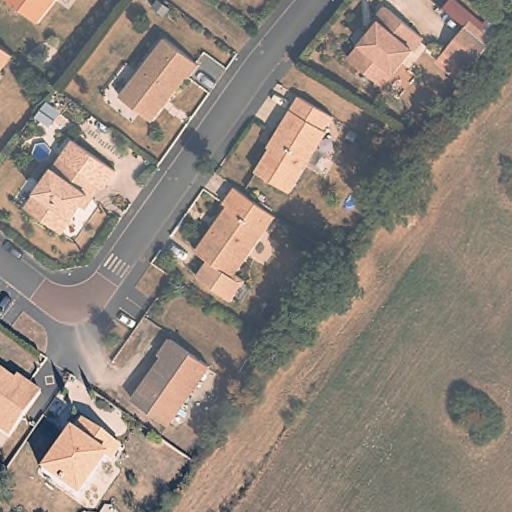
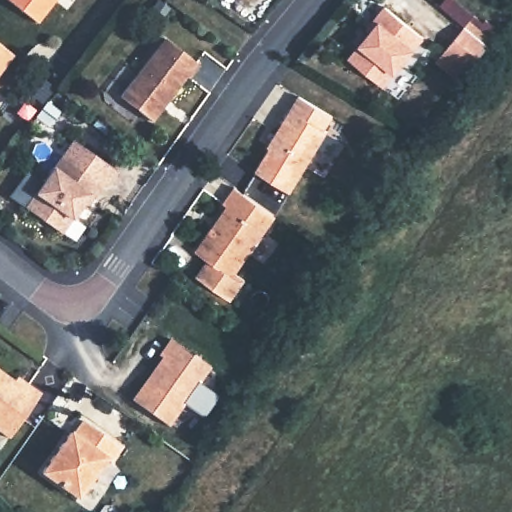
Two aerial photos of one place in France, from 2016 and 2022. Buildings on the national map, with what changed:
unchanged [(8,0),(57,0),(40,23),(8,0)]
unchanged [(379,22),(375,19),(386,7),(423,38),(383,86),(349,59),(379,22)]
unchanged [(471,20),(493,38),(492,41),(488,46),(472,71),(446,50),(465,27),(471,20)]
unchanged [(189,77),(187,76),(152,121),(120,96),(165,38),(199,64),(189,77)]
unchanged [(9,51),(14,55),(0,72),(0,45),(9,51)]
unchanged [(332,116),(324,130),(327,132),(290,192),(256,171),(273,142),(272,140),(298,96),(332,116)]
unchanged [(35,197),(72,146),(112,174),(102,187),(98,185),(71,223),(35,197)]
unchanged [(257,203),(276,216),(232,277),(196,251),(227,206),(223,203),(235,187),(257,203)]
unchanged [(167,425),(132,400),(162,357),(159,355),(170,338),(209,366),(167,425)]
unchanged [(9,437),(0,431),(0,371),(23,387),(26,383),(40,393),(9,437)]
unchanged [(110,461),(105,457),(77,497),(42,472),(70,431),(72,433),(82,420),(120,446),(110,461)]

